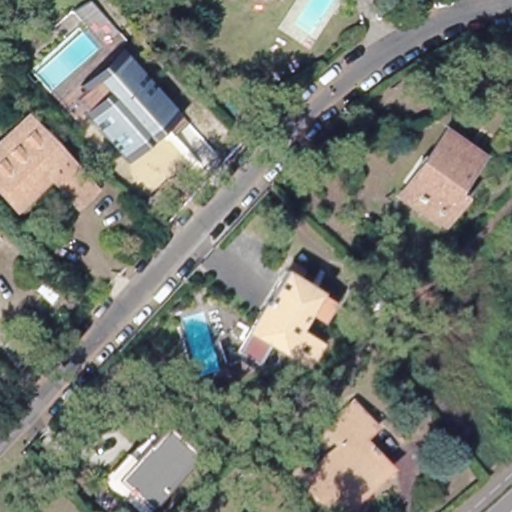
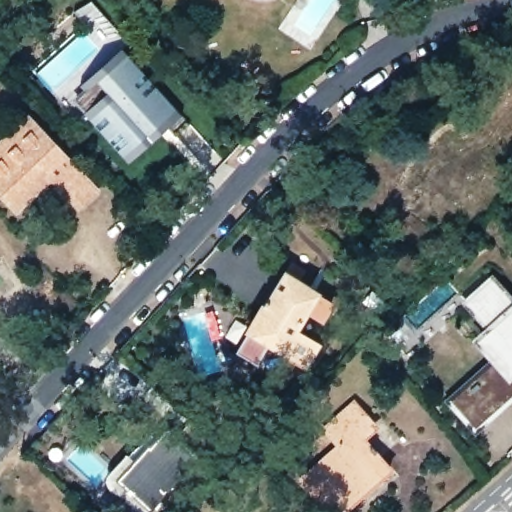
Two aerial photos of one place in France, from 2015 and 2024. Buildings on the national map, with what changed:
unchanged [(82,30),(69,15),(83,5),(113,37),(100,50),(98,49),(82,30)]
unchanged [(343,20),(334,30),(327,24),(336,15),(343,20)]
unchanged [(141,51),(149,60),(142,66),(156,81),(133,101),(135,104),(102,133),(76,105),(68,96),(124,45),(132,55),(135,57),(141,51)]
new [(129,162),(102,133),(135,104),(133,101),(155,82),(182,115),(129,162)]
unchanged [(41,167),(29,177),(32,182),(32,185),(30,189),(27,190),(23,188),(8,200),(0,192),(0,136),(23,114),(31,122),(89,185),(73,201),(41,167)]
demolished [(483,156),(459,194),(464,197),(445,225),(420,208),(423,203),(407,192),(446,134),(483,156)]
unchanged [(302,327),(324,341),(310,365),(274,342),(261,365),(241,352),(290,271),(324,292),(302,327)]
new [(446,400),(488,360),(473,341),(486,330),(462,302),(494,275),(512,293),(512,403),(475,435),(446,400)]
unchanged [(375,421),(361,435),(389,467),(344,508),(327,488),(320,494),(304,476),(341,443),(327,426),(355,400),(375,421)]
unchanged [(168,423),(201,455),(154,504),(121,474),(157,435),(168,423)]
unchanged [(121,474),(154,504),(148,510),(131,496),(132,493),(111,472),(110,470),(110,467),(111,463),(125,448),(128,451),(149,428),(157,435),(121,474)]

